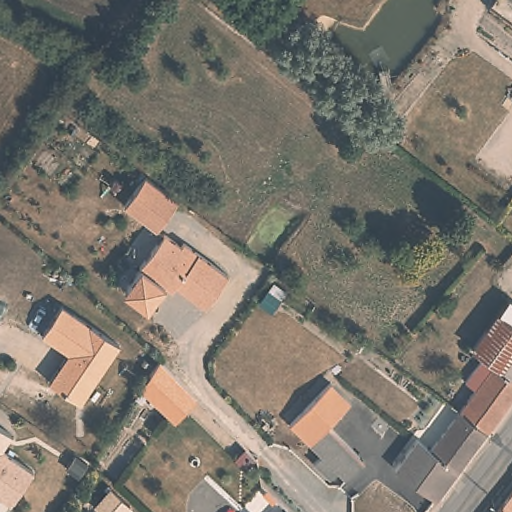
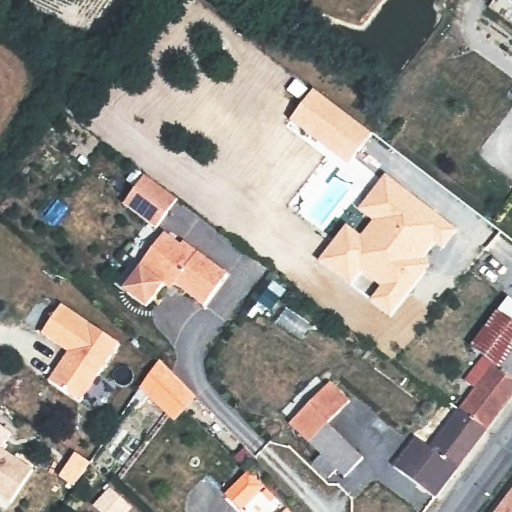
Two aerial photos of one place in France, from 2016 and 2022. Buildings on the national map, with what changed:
new [(313,91),(372,136),(348,167),(290,122),(313,91)]
unchanged [(156,231),(123,206),(145,176),(177,202),(156,231)]
new [(352,232),(360,239),(373,222),(358,212),(385,177),(456,232),(443,250),(435,244),(421,261),(417,267),(425,272),(391,318),(325,268),(319,263),(346,227),(352,232)]
unchanged [(175,285),(165,286),(139,267),(164,233),(180,246),(182,242),(227,276),(204,307),(175,285)]
unchanged [(164,287),(147,310),(124,290),(139,268),(139,267),(161,284),(164,287)]
unchanged [(280,300),(272,311),(260,302),(269,292),(280,300)]
unchanged [(486,432),(460,412),(475,391),(466,383),(485,358),(472,350),(478,341),(507,301),(512,304),(512,397),(486,432)]
unchanged [(119,346),(80,405),(49,383),(68,355),(41,337),(60,307),(119,346)]
unchanged [(150,389),(160,378),(184,401),(174,412),(150,389)]
unchanged [(327,426),(363,460),(345,479),(337,472),(330,480),(314,465),(321,457),(290,427),(330,385),(350,403),(327,426)]
unchanged [(435,501),(395,470),(415,441),(430,451),(460,412),(486,432),(435,501)]
unchanged [(0,498),(0,429),(12,437),(3,451),(32,471),(9,505),(0,498)]
unchanged [(494,512),(512,490),(512,512),(494,512)]

